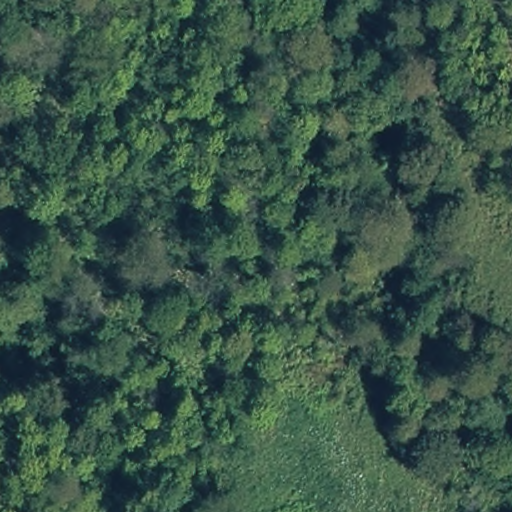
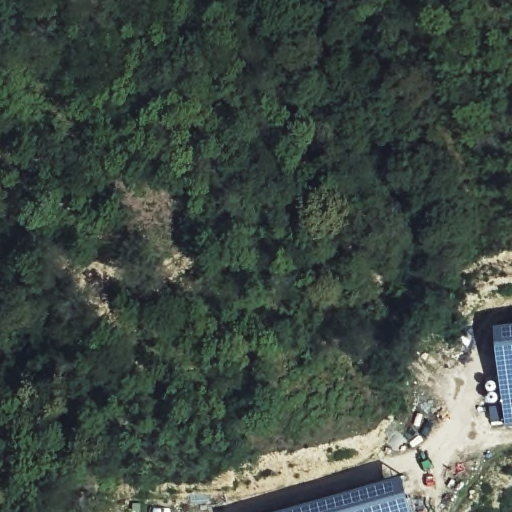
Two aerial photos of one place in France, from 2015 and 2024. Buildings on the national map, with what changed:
new [(505,427),(494,325),(512,323),(512,426),(505,427)]
new [(276,512),(404,477),(414,512),(276,512)]

